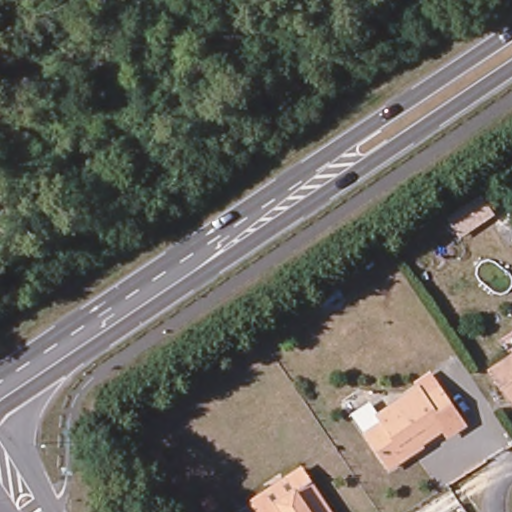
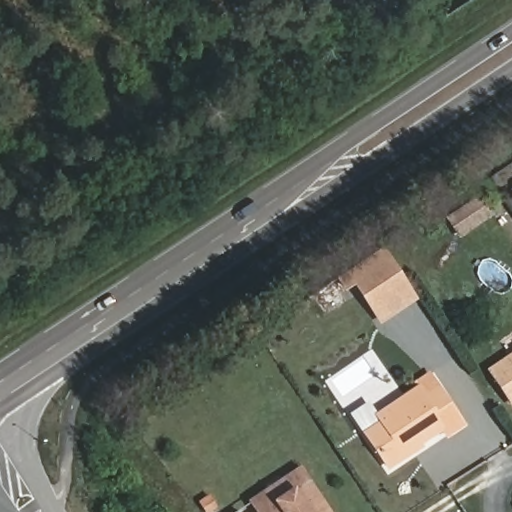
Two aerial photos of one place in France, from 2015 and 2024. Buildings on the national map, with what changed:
unchanged [(495,201),(499,208),(488,215),(483,208),(495,201)]
new [(467,204),(482,208),(490,218),(459,239),(445,219),(467,204)]
new [(350,290),(341,278),(385,249),(418,300),(380,325),(355,287),(350,290)]
unchanged [(512,403),(490,371),(512,356),(512,403)]
unchanged [(462,427),(448,437),(443,430),(418,446),(420,448),(389,468),(367,434),(383,423),(378,415),(418,389),(423,397),(437,388),(462,427)]
unchanged [(307,482),(263,512),(238,512),(299,470),(307,482)]
unchanged [(328,512),(263,512),(307,482),(328,512)]
unchanged [(219,512),(211,512),(217,509),(219,512)]

